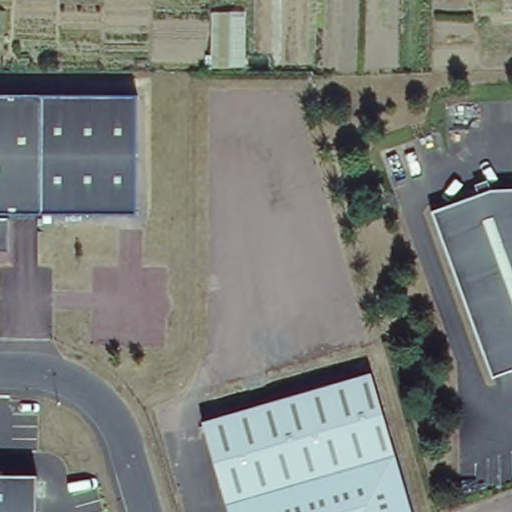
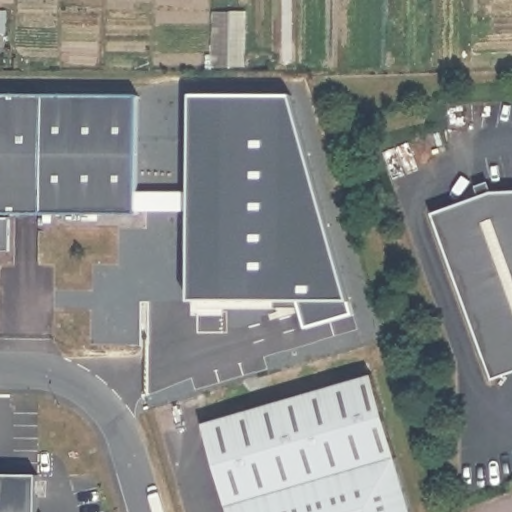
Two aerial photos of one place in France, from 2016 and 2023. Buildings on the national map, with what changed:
unchanged [(134,96),(133,216),(0,216),(0,96),(134,96)]
new [(191,192),(191,100),(286,99),(350,313),(306,325),(299,301),(189,301),(189,211),(133,212),(133,192),(191,192)]
unchanged [(431,214),(478,198),(475,189),(494,182),(497,191),(512,191),(512,322),(476,335),(431,214)]
unchanged [(512,376),(492,383),(476,335),(512,322),(512,376)]
unchanged [(372,373),(414,512),(232,512),(205,421),(372,373)]
unchanged [(36,512),(0,512),(0,476),(36,476),(36,512)]

